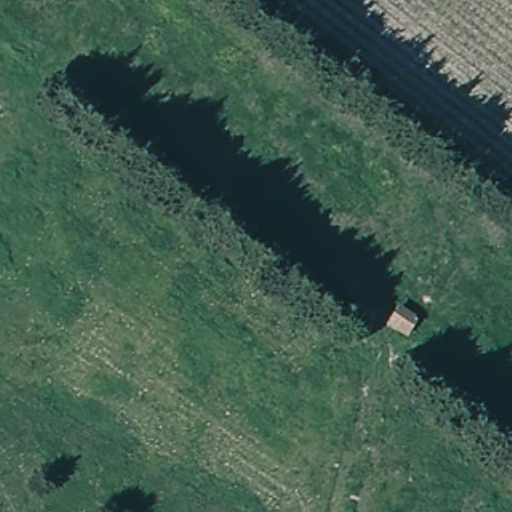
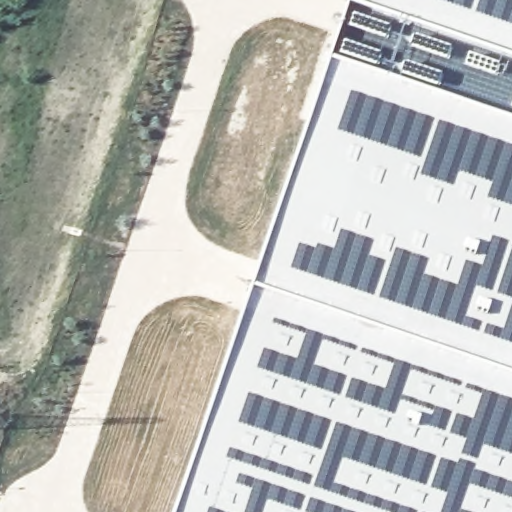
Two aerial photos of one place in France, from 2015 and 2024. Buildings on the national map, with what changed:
new [(189,512),(363,0),(512,0),(512,512),(189,512)]
demolished [(389,322),(401,305),(420,318),(408,336),(389,322)]

